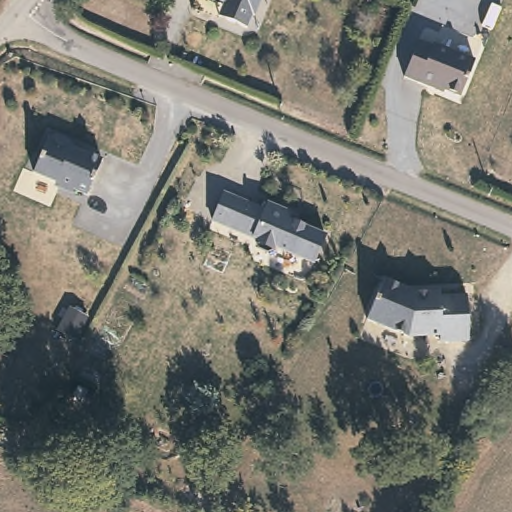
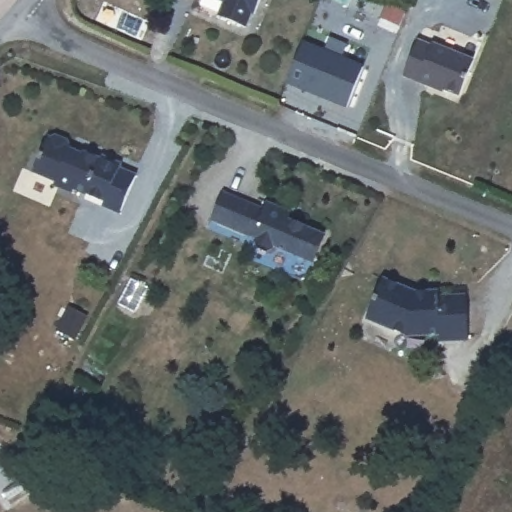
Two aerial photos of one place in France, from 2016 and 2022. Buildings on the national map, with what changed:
unchanged [(262,0),(257,13),(251,11),(245,24),(225,17),(215,13),(220,0),(262,0)]
new [(350,109),(288,84),(306,41),(366,65),(350,109)]
unchanged [(414,44),(428,50),(428,48),(469,64),(455,100),(430,91),(429,93),(399,81),(414,44)]
unchanged [(44,138),(46,139),(51,136),(63,141),(65,147),(67,148),(66,149),(78,154),(79,153),(98,160),(83,196),(69,193),(68,197),(53,190),(51,185),(28,175),(44,138)]
unchanged [(266,209),(269,202),(291,211),(288,218),(326,234),(314,262),(276,246),(275,248),(268,251),(259,247),(256,240),(257,238),(213,219),(225,192),(266,209)]
unchanged [(417,290),(438,289),(438,294),(465,291),(470,335),(442,339),(441,332),(414,322),(409,334),(368,317),(385,277),(417,290)]
unchanged [(74,320),(66,335),(47,324),(55,310),(74,320)]

